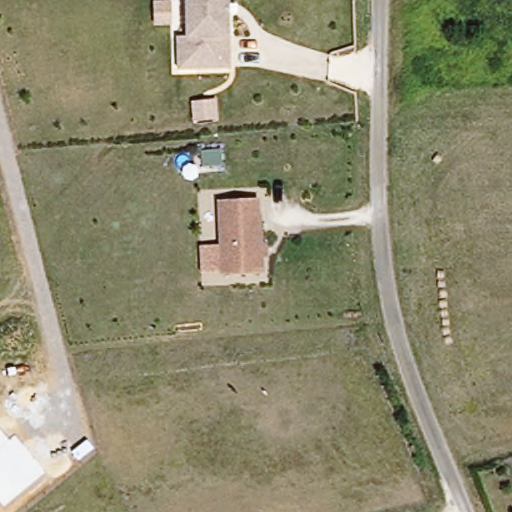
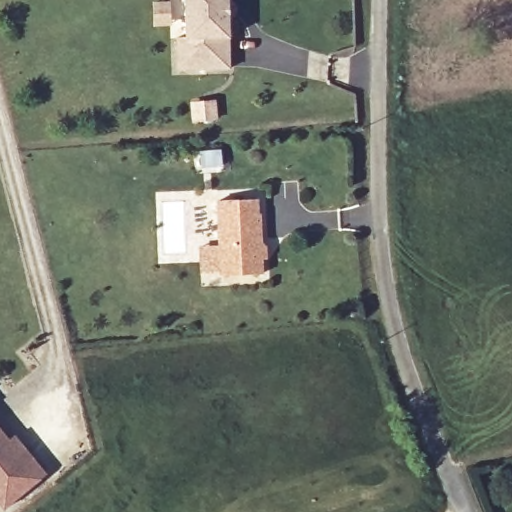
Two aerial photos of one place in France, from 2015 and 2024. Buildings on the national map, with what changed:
unchanged [(177,41),(185,41),(185,0),(229,0),(230,73),(197,73),(177,73),(177,58),(177,41)]
unchanged [(257,199),(262,241),(267,248),(262,253),(262,274),(222,274),(199,273),(200,246),(220,244),(218,202),(257,199)]
new [(9,439),(14,434),(48,473),(3,510),(0,506),(0,428),(9,439)]

